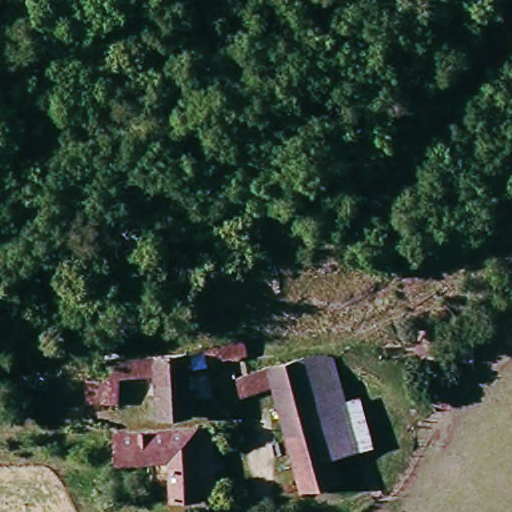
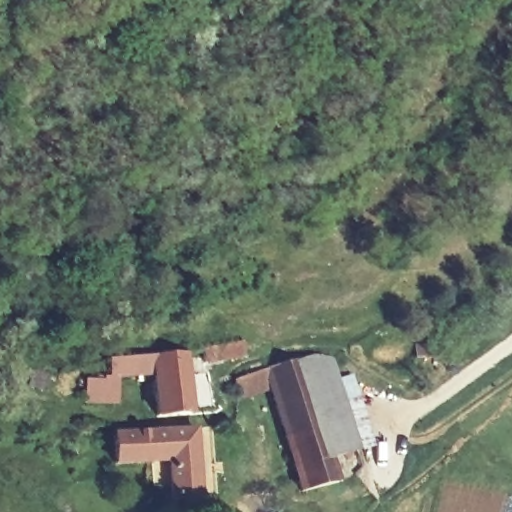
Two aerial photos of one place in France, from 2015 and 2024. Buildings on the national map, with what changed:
unchanged [(337,348),(367,445),(339,454),(307,357),(337,348)]
unchanged [(211,365),(207,356),(226,349),(227,359),(211,365)]
unchanged [(162,373),(112,377),(112,359),(192,357),(196,418),(165,419),(162,373)]
unchanged [(277,390),(245,401),(240,378),(307,357),(339,454),(346,478),(309,491),(277,390)]
unchanged [(27,399),(27,382),(32,381),(46,384),(43,400),(27,399)]
unchanged [(89,385),(112,385),(112,403),(88,402),(89,385)]
unchanged [(179,493),(177,458),(122,458),(122,430),(201,425),(202,493),(179,493)]

